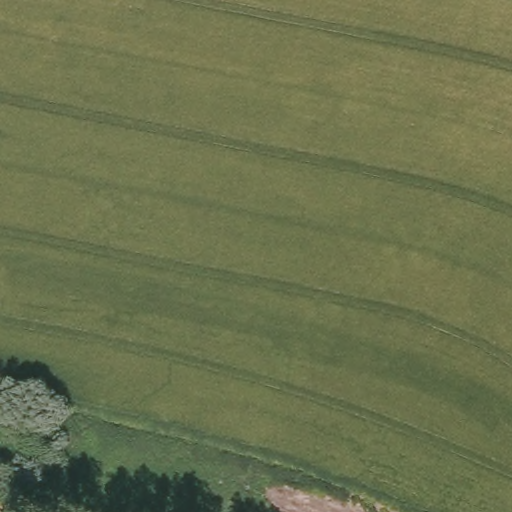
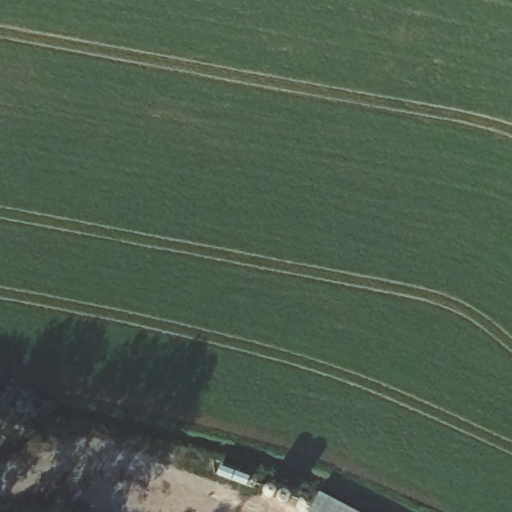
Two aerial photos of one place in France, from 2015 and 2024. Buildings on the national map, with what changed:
new [(352,512),(313,512),(322,496),(352,512)]

